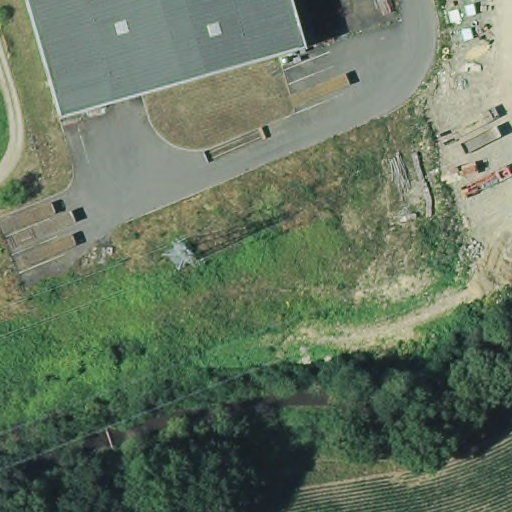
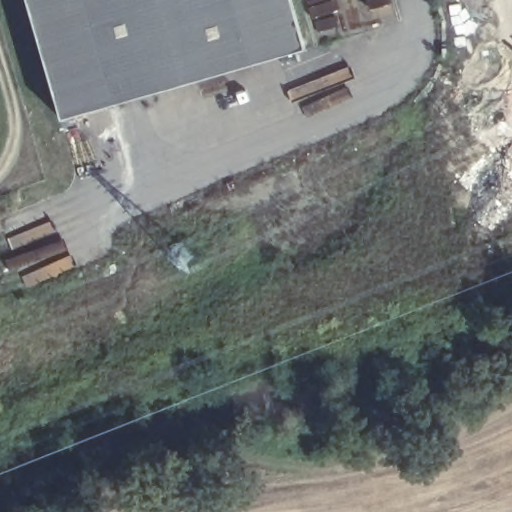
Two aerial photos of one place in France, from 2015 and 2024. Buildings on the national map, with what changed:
unchanged [(310,41),(153,86),(133,92),(67,112),(34,0),(299,0),(310,41)]

